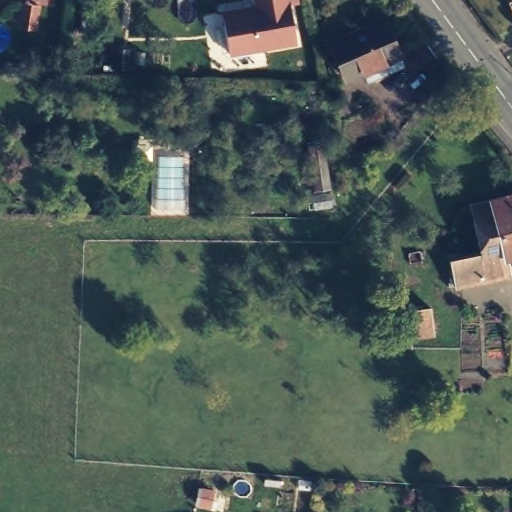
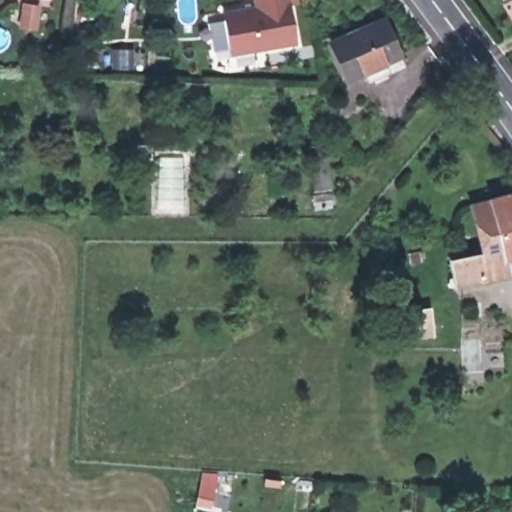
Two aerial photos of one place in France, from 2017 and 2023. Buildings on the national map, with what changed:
unchanged [(255,4),(254,0),(298,0),(298,4),(290,6),(296,42),(230,55),(222,9),(255,4)]
unchanged [(505,0),(512,0),(512,15),(505,0)]
unchanged [(405,60),(369,76),(364,66),(347,74),(332,41),(349,34),(347,30),(384,14),(405,60)]
unchanged [(314,190),(309,147),(324,144),(330,188),(314,190)]
unchanged [(512,193),(512,253),(500,256),(504,275),(451,286),(445,259),(477,252),(468,204),(512,193)]
unchanged [(430,307),(434,335),(411,339),(407,310),(430,307)]

